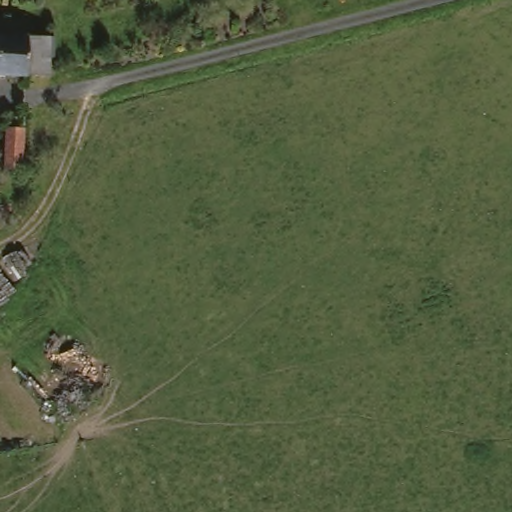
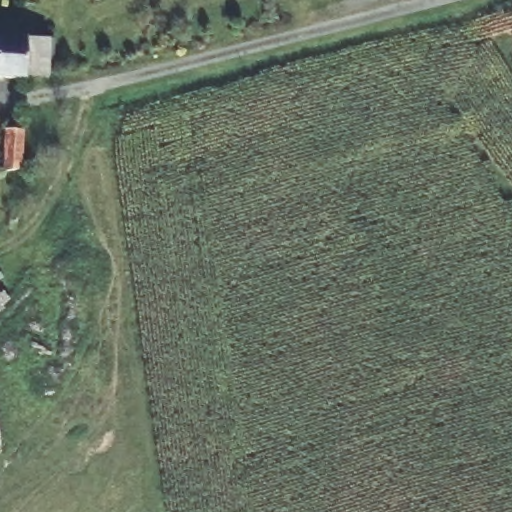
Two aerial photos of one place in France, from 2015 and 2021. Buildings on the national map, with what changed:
unchanged [(35,78),(0,77),(0,35),(35,37),(57,38),(57,79),(35,78)]
unchanged [(30,125),(29,167),(9,166),(10,124),(30,125)]
unchanged [(0,186),(0,167),(6,167),(5,186),(0,186)]

